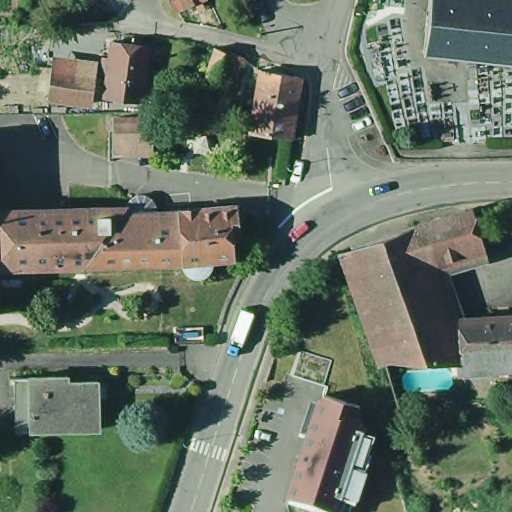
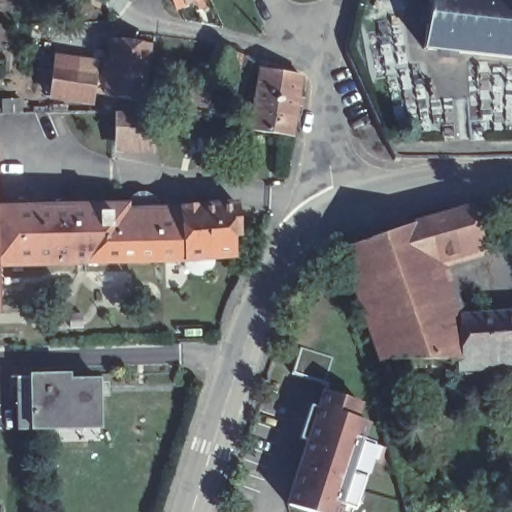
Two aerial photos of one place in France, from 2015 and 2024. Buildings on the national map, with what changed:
unchanged [(175,9),(171,0),(193,0),(175,9)]
unchanged [(455,56),(452,56),(452,58),(443,57),(443,55),(440,54),(440,52),(437,52),(437,49),(421,48),(426,0),(512,0),(512,57),(458,52),(457,54),(455,54),(455,56)]
unchanged [(50,66),(92,72),(92,74),(105,76),(110,40),(147,45),(145,59),(147,60),(147,67),(144,67),(140,99),(102,94),(102,92),(90,90),(89,101),(47,95),(50,66)]
unchanged [(213,45),(233,52),(223,81),(203,74),(213,45)]
unchanged [(250,119),(258,68),(298,74),(289,135),(249,128),(227,124),(229,115),(250,119)]
unchanged [(205,106),(165,99),(169,79),(208,86),(205,106)]
unchanged [(167,104),(197,110),(195,118),(166,113),(167,104)]
unchanged [(117,152),(114,111),(155,110),(155,149),(117,152)]
unchanged [(0,264),(0,209),(70,207),(119,206),(119,211),(147,210),(172,208),(230,203),(232,233),(225,233),(227,256),(205,257),(205,260),(204,263),(202,267),(199,269),(195,272),(192,272),(189,272),(186,272),(184,271),(181,269),(178,265),(177,262),(177,259),(78,262),(0,264)]
unchanged [(487,207),(493,259),(461,262),(445,221),(487,207)]
unchanged [(485,368),(460,370),(460,359),(450,359),(387,356),(350,245),(412,226),(414,229),(445,221),(461,262),(447,264),(458,316),(512,311),(512,366),(485,368)]
unchanged [(450,386),(400,389),(399,368),(449,365),(450,386)]
unchanged [(29,430),(28,377),(81,376),(81,382),(110,382),(110,423),(110,430),(69,430),(29,430)]
unchanged [(362,419),(371,421),(343,512),(310,512),(286,505),(323,389),(366,403),(362,419)]

